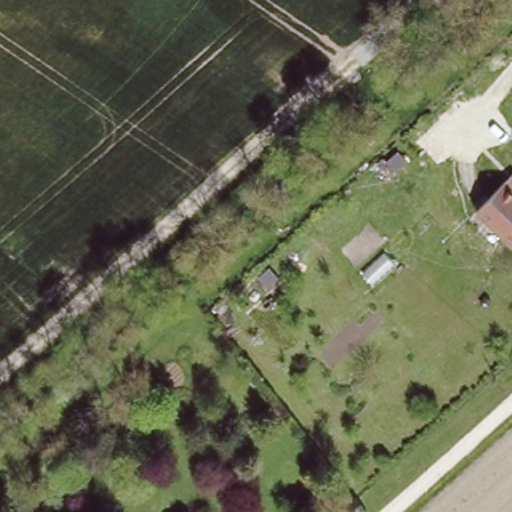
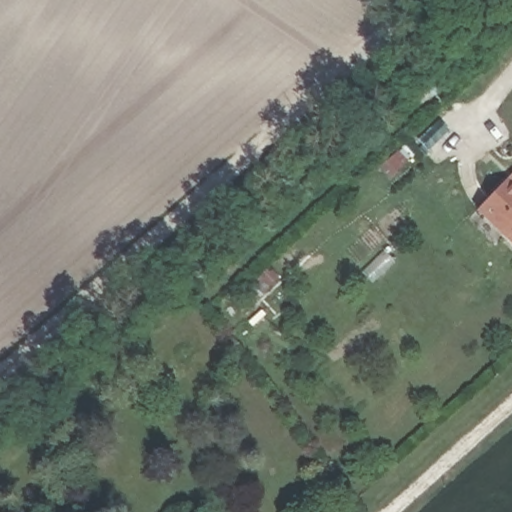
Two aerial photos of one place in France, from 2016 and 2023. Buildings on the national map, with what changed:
unchanged [(510,180),(512,178),(512,240),(481,210),(510,180)]

